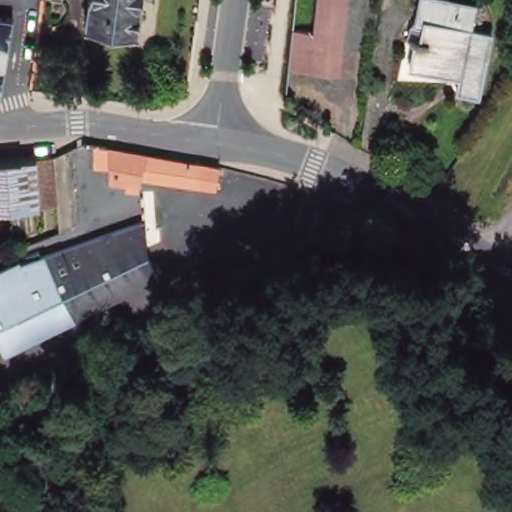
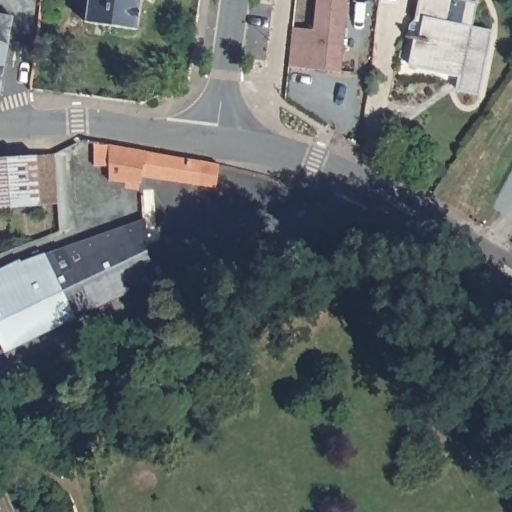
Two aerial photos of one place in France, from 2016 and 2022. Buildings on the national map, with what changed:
unchanged [(89,24),(93,0),(145,0),(140,33),(89,24)]
unchanged [(319,0),(351,0),(342,71),(310,67),(290,64),(293,29),(315,31),(319,0)]
unchanged [(495,27),(481,95),(457,90),(461,73),(409,63),(415,31),(420,32),(426,0),(428,0),(445,4),(443,16),(495,27)]
unchanged [(1,11),(13,13),(16,16),(2,93),(0,93),(0,9),(1,9),(1,11)]
unchanged [(158,177),(154,176),(152,185),(115,179),(120,144),(142,149),(159,152),(213,161),(210,185),(158,177)]
unchanged [(57,153),(62,203),(45,205),(0,210),(0,159),(40,155),(57,153)]
unchanged [(510,216),(508,220),(496,214),(503,203),(512,208),(512,212),(510,216)]
unchanged [(34,338),(4,352),(0,345),(0,275),(20,265),(21,267),(78,245),(136,222),(144,218),(146,258),(155,280),(89,311),(34,338)]

